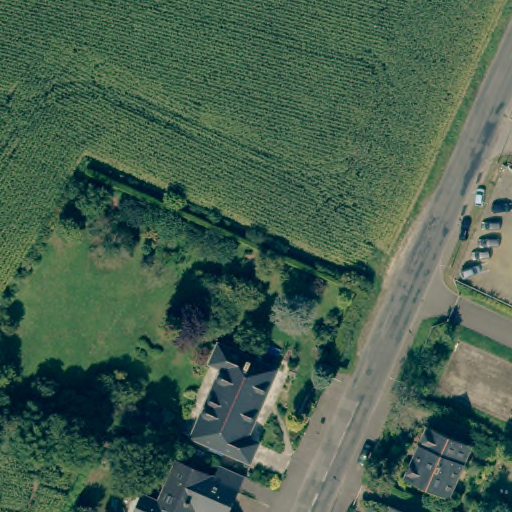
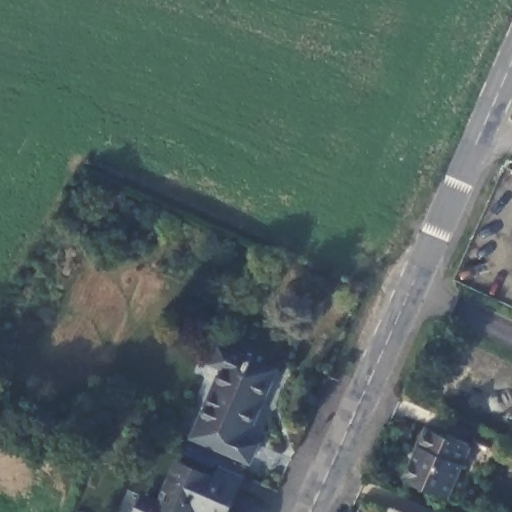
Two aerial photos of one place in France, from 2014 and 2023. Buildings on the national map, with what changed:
unchanged [(278,369),(248,438),(260,443),(252,462),(194,438),(223,369),(212,364),(219,346),(278,369)]
unchanged [(471,449),(449,496),(408,478),(429,430),(471,449)]
unchanged [(161,508),(179,468),(216,484),(222,470),(245,480),(239,494),(231,512),(140,512),(145,501),(161,508)]
unchanged [(392,512),(394,507),(404,512),(392,512)]

